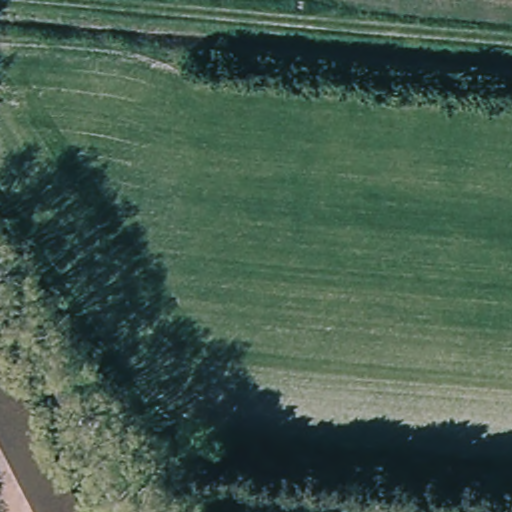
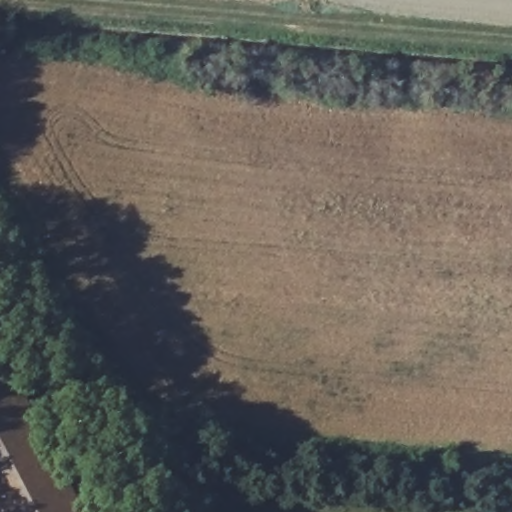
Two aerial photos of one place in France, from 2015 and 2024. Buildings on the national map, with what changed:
unchanged [(5,379),(0,382),(0,370),(5,379)]
unchanged [(73,512),(0,512),(0,382),(5,379),(73,512)]

